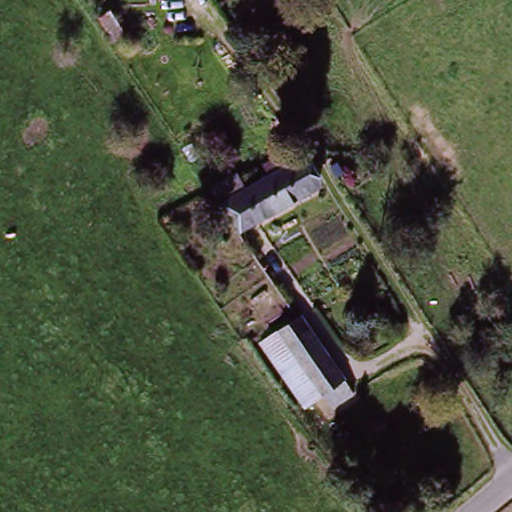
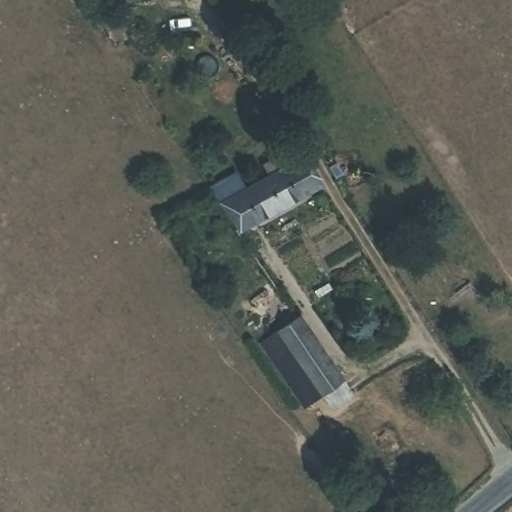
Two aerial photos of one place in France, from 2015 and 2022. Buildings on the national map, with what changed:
unchanged [(179,0),(179,1),(155,3),(155,0),(179,0)]
unchanged [(218,215),(208,200),(244,181),(252,196),(290,173),(282,159),(299,150),(323,187),(235,238),(218,215)]
unchanged [(330,418),(320,399),(305,408),(255,340),(280,327),(312,309),(350,381),(361,400),(330,418)]

